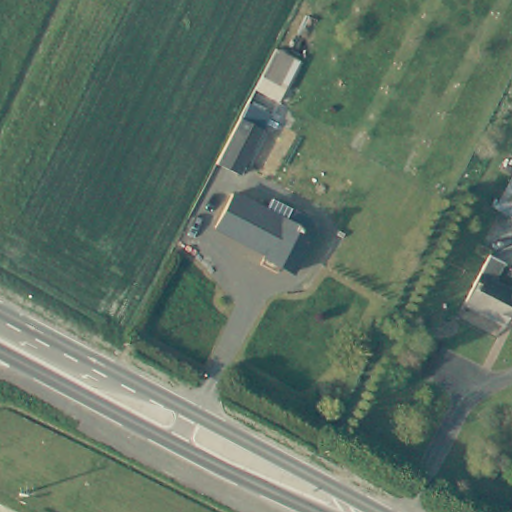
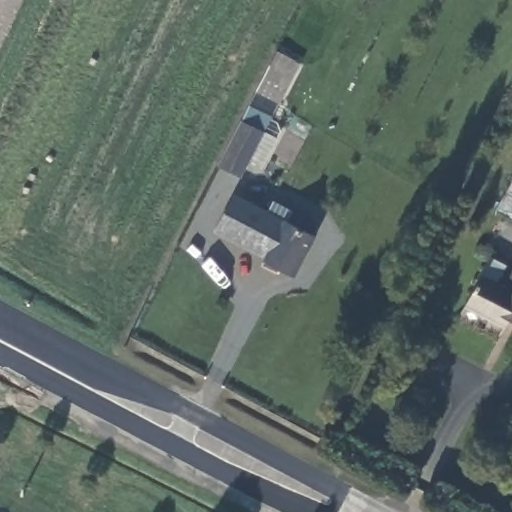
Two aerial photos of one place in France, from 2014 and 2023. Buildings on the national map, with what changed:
unchanged [(301,67),(244,180),(220,167),(278,55),(301,67)]
unchanged [(267,214),(273,200),(298,212),(292,224),(314,235),(292,281),(258,265),(264,252),(219,230),(234,197),(267,214)]
unchanged [(508,322),(504,331),(469,311),(493,262),(508,272),(499,290),(512,297),(512,325),(508,322)]

